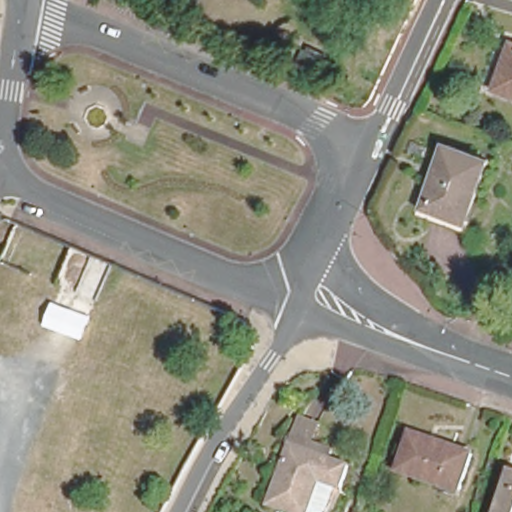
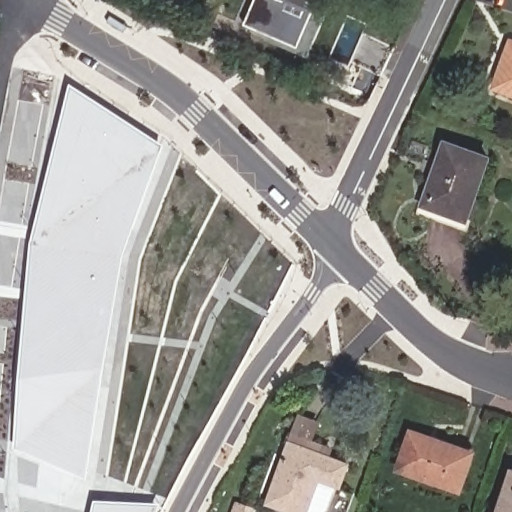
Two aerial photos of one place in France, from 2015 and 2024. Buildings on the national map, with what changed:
new [(255,0),(332,0),(331,1),(325,16),(326,17),(308,59),(266,40),(268,35),(244,24),(255,0)]
new [(365,35),(394,49),(380,78),(351,64),(365,35)]
unchanged [(512,46),(512,96),(487,86),(503,43),(512,46)]
new [(15,378),(29,249),(32,221),(69,86),(156,152),(121,245),(101,365),(84,480),(12,449),(15,378)]
unchanged [(468,220),(425,203),(447,140),(492,158),(468,220)]
unchanged [(340,492),(317,484),(308,512),(276,512),(265,509),(289,447),(295,433),(327,444),(322,459),(349,469),(340,492)]
unchanged [(470,456),(456,494),(395,473),(408,436),(470,456)]
unchanged [(502,476),(512,479),(512,512),(491,512),(502,476)]
new [(156,507),(154,512),(92,512),(94,507),(156,507)]

